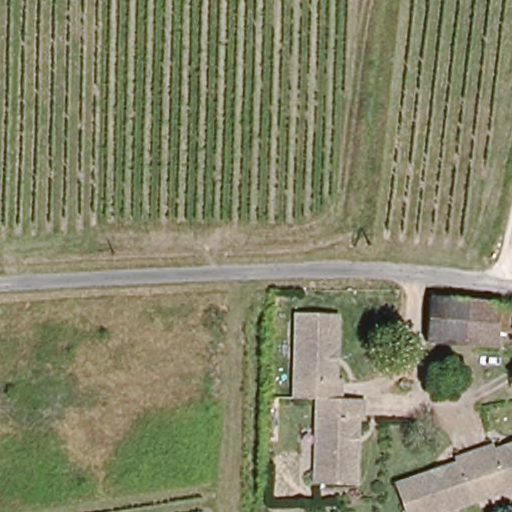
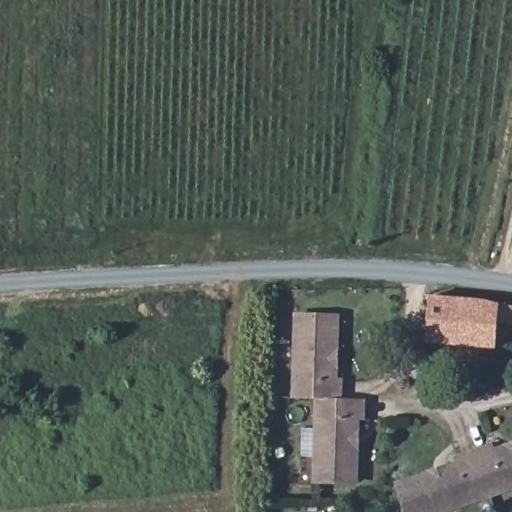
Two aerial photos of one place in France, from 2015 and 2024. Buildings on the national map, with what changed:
unchanged [(430,298),(480,303),(512,309),(512,332),(496,330),(494,347),(426,342),(430,298)]
unchanged [(315,384),(293,383),(296,300),(336,301),(335,334),(329,340),(329,347),(335,353),(334,367),(339,367),(339,384),(361,385),(360,403),(355,403),(355,417),(349,422),(349,429),(354,434),(353,468),(318,467),(312,467),(312,457),(315,384)]
unchanged [(440,512),(405,512),(396,485),(427,474),(434,478),(441,475),(444,468),(458,464),(456,459),(488,448),(490,452),(502,448),(509,451),(512,450),(512,487),(440,512)]

